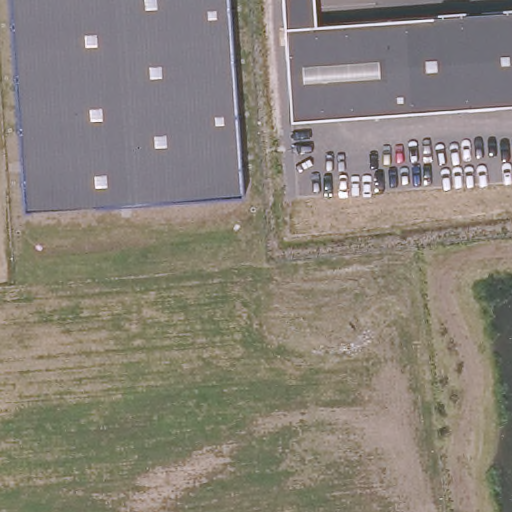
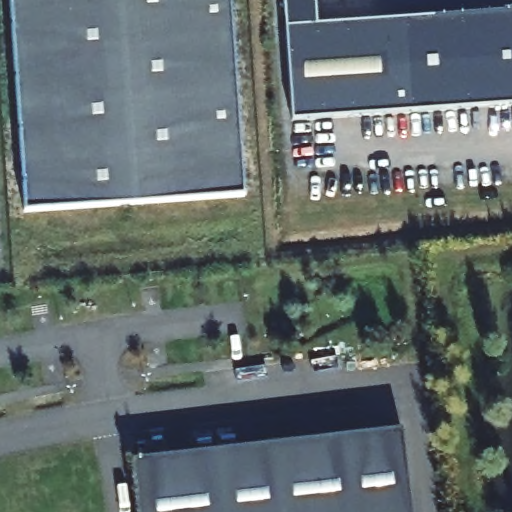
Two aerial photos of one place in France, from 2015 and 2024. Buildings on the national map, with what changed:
unchanged [(27,208),(15,0),(225,0),(239,196),(27,208)]
unchanged [(314,24),(512,10),(512,103),(290,119),(282,0),(312,0),(314,24)]
new [(411,512),(138,512),(132,459),(402,428),(411,512)]

